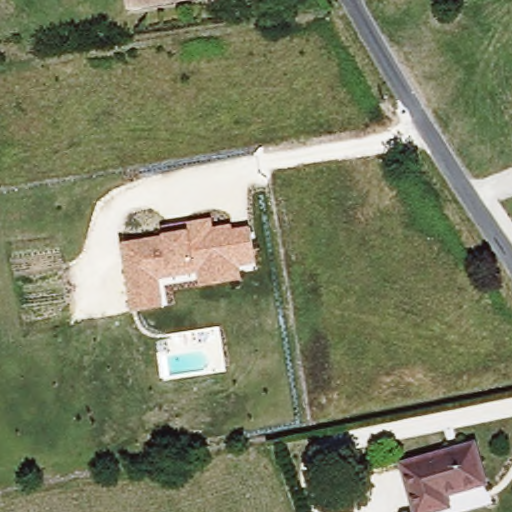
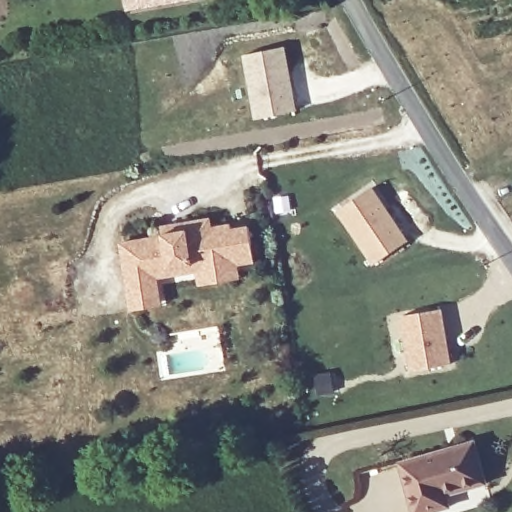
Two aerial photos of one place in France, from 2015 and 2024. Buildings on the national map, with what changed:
unchanged [(125,0),(191,0),(126,7),(125,0)]
new [(283,48),(295,111),(256,119),(244,55),(283,48)]
new [(372,189),(408,242),(375,265),(338,210),(372,189)]
unchanged [(121,242),(164,235),(161,224),(210,216),(212,226),(232,222),(234,227),(250,225),(256,262),(240,266),(241,278),(200,285),(198,272),(160,280),(164,306),(131,312),(121,242)]
new [(443,311),(451,365),(412,372),(403,317),(443,311)]
unchanged [(485,483),(437,496),(440,508),(423,512),(412,512),(399,461),(473,441),(485,483)]

